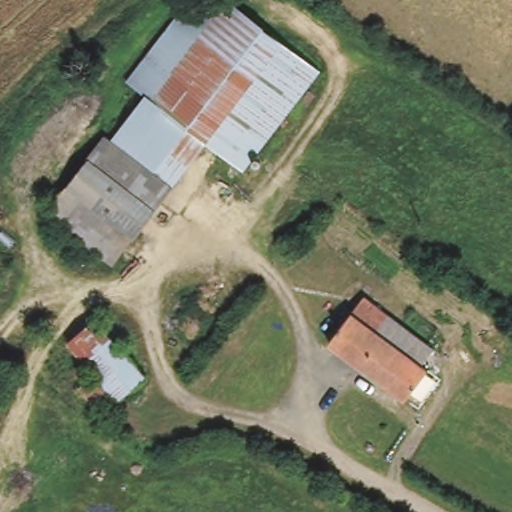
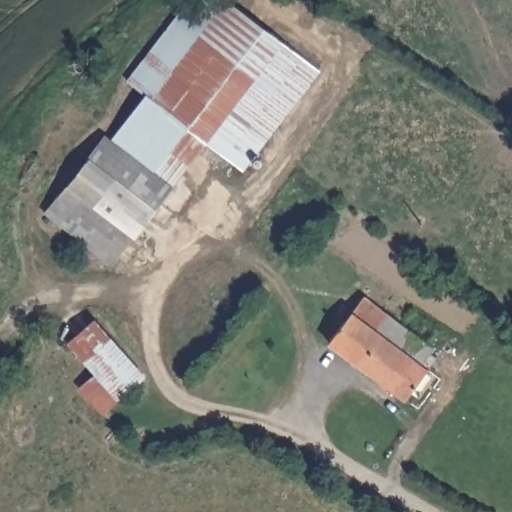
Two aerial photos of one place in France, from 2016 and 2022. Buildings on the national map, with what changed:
unchanged [(190,0),(217,0),(226,7),(151,104),(146,100),(124,83),(190,0)]
unchanged [(279,47),(202,146),(169,190),(111,144),(146,100),(151,104),(226,7),(279,47)]
unchanged [(316,74),(237,175),(202,146),(279,47),(316,74)]
unchanged [(169,190),(113,268),(44,212),(106,140),(111,144),(169,190)]
unchanged [(334,336),(363,295),(390,315),(387,318),(377,332),(421,365),(426,370),(405,398),(363,367),(330,342),(334,336)]
unchanged [(433,348),(421,365),(377,332),(387,318),(390,315),(433,348)]
unchanged [(101,374),(99,372),(76,343),(99,321),(145,378),(139,384),(121,400),(106,413),(85,388),(101,374)]

